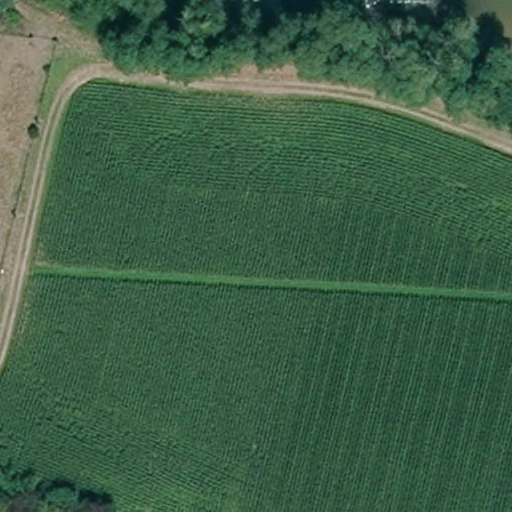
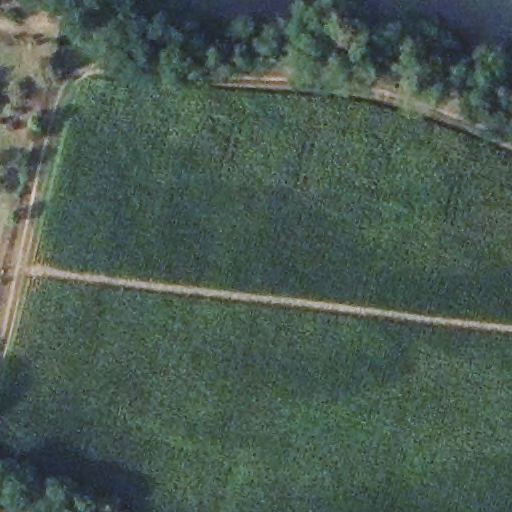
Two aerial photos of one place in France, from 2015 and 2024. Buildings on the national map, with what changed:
[]

